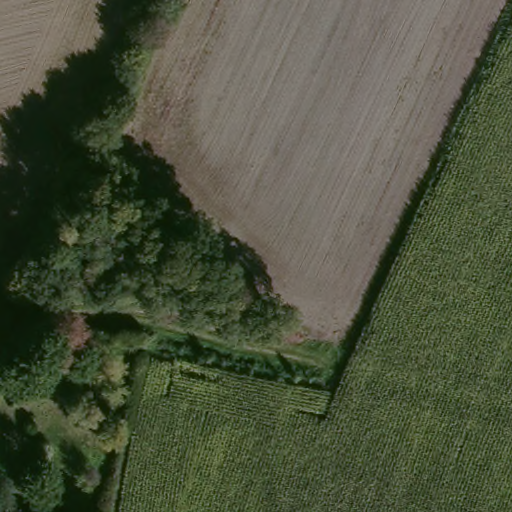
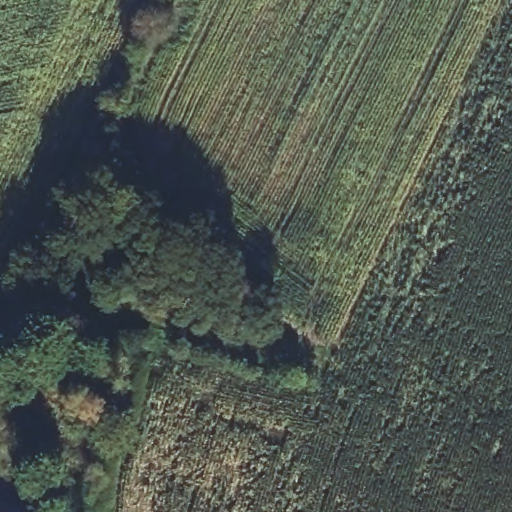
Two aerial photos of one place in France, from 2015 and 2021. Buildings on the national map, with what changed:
unchanged [(0,512),(0,501),(32,512),(0,512)]

